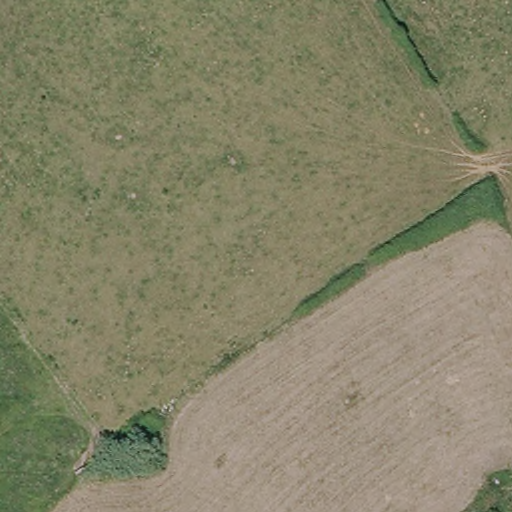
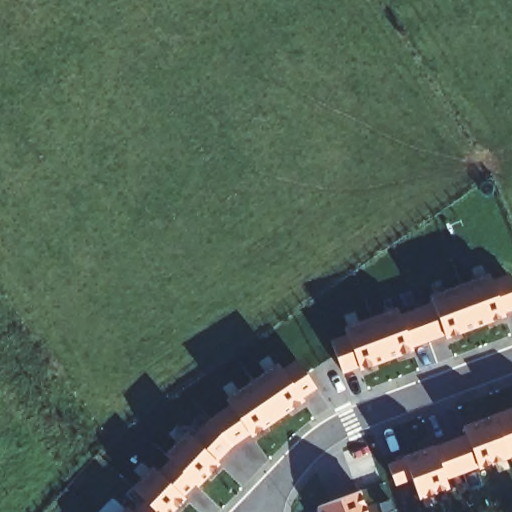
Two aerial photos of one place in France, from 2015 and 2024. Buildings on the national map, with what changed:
new [(492,279),(509,274),(512,283),(512,311),(342,373),(330,340),(347,334),(345,328),(398,307),(401,315),(433,303),(430,294),(490,272),(492,279)]
new [(251,437),(248,434),(231,447),(217,463),(220,464),(197,488),(194,485),(184,498),(185,499),(174,512),(120,512),(127,505),(133,512),(144,498),(132,488),(152,466),(159,471),(169,459),(164,454),(187,431),(192,436),(208,419),(230,404),(227,398),(277,362),(283,370),(296,359),(317,389),(251,437)]
new [(445,482),(447,485),(424,494),(425,497),(417,500),(410,481),(394,487),(385,464),(464,436),(460,428),(512,408),(512,456),(445,482)]
new [(368,512),(319,512),(317,507),(360,490),(368,512)]

